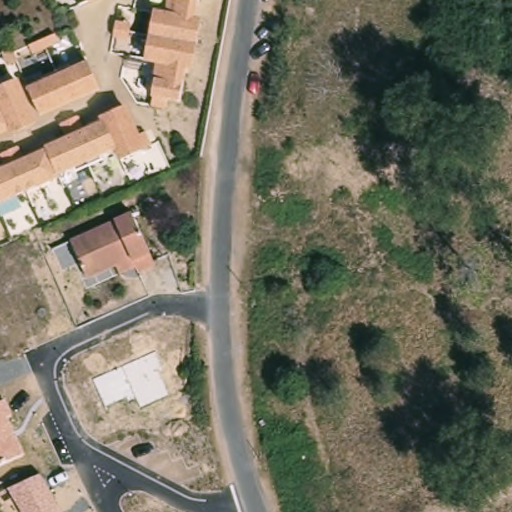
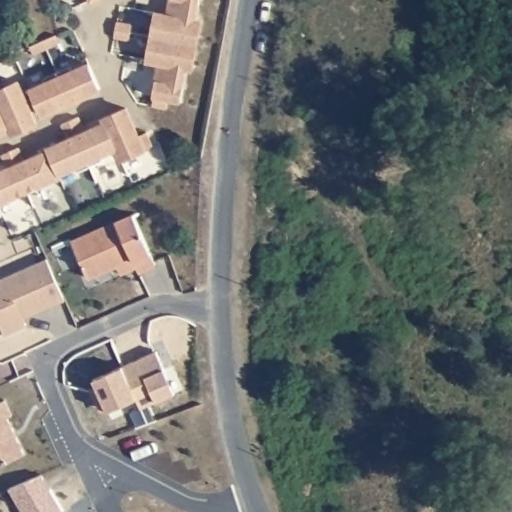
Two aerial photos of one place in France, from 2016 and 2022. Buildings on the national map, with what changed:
unchanged [(164,100),(152,98),(158,63),(143,60),(152,13),(167,16),(171,0),(198,0),(195,20),(197,21),(188,68),(185,68),(177,112),(162,110),(164,100)]
unchanged [(108,50),(110,41),(112,32),(127,34),(124,52),(108,50)]
unchanged [(9,65),(3,51),(12,47),(16,56),(18,60),(9,65)]
unchanged [(42,119),(21,129),(18,124),(0,133),(0,102),(7,98),(3,88),(24,78),(29,89),(87,63),(98,88),(40,114),(42,119)]
unchanged [(49,146),(108,121),(107,118),(129,109),(138,127),(146,123),(152,137),(144,141),(147,149),(126,159),(119,147),(61,172),(60,170),(0,198),(0,167),(49,144),(49,146)]
unchanged [(93,197),(86,184),(103,177),(109,190),(93,197)]
unchanged [(151,270),(133,278),(126,264),(79,284),(63,246),(127,218),(151,270)]
new [(65,302),(24,320),(27,326),(5,336),(0,324),(0,282),(47,261),(65,302)]
new [(105,409),(93,381),(157,354),(165,373),(175,396),(170,398),(140,411),(136,401),(128,404),(107,413),(105,409)]
unchanged [(0,403),(3,401),(25,454),(0,465),(0,403)]
unchanged [(39,475),(61,512),(21,512),(7,489),(39,475)]

